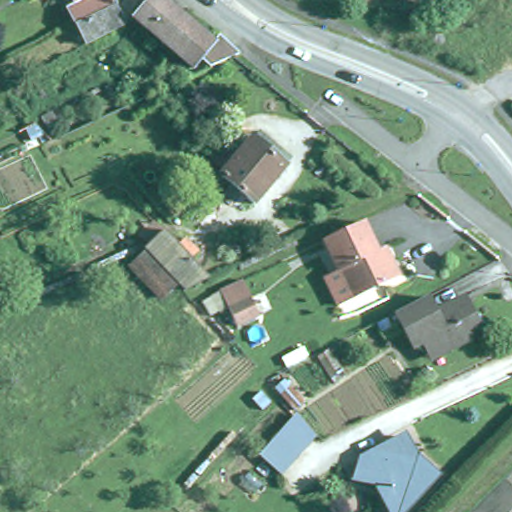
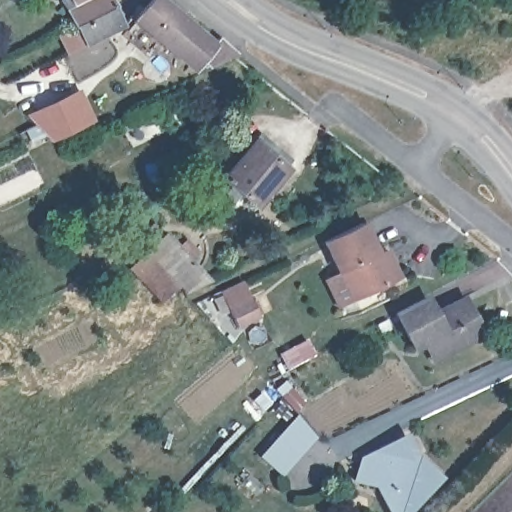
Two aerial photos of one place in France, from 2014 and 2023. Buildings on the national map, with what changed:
unchanged [(86,44),(76,26),(67,8),(75,4),(72,0),(113,0),(116,7),(125,25),(86,44)]
unchanged [(235,53),(225,58),(205,66),(196,58),(188,68),(130,19),(146,0),(157,0),(208,43),(215,35),(235,53)]
new [(97,121),(51,142),(32,114),(83,90),(97,121)]
unchanged [(216,208),(225,196),(216,188),(246,151),(254,142),(287,169),(280,178),(250,215),(235,204),(226,216),(216,208)]
unchanged [(350,304),(321,244),(360,226),(374,256),(381,253),(386,263),(395,282),(350,304)]
unchanged [(172,288),(141,255),(160,237),(174,252),(181,245),(192,258),(185,265),(203,284),(180,296),(172,288)]
unchanged [(172,288),(156,304),(126,271),(141,255),(172,288)]
unchanged [(244,279),(261,315),(238,326),(221,290),(244,279)]
unchanged [(483,332),(433,358),(425,342),(415,347),(397,312),(427,297),(435,312),(448,305),(460,299),(462,305),(467,302),(483,332)]
unchanged [(285,379),(305,402),(295,411),(275,388),(285,379)]
unchanged [(295,415),(315,438),(278,478),(257,459),(295,415)]
unchanged [(395,437),(399,437),(402,440),(402,442),(398,448),(408,457),(412,455),(435,476),(401,512),(387,512),(372,484),(349,479),(358,457),(381,445),(380,444),(395,437)]

